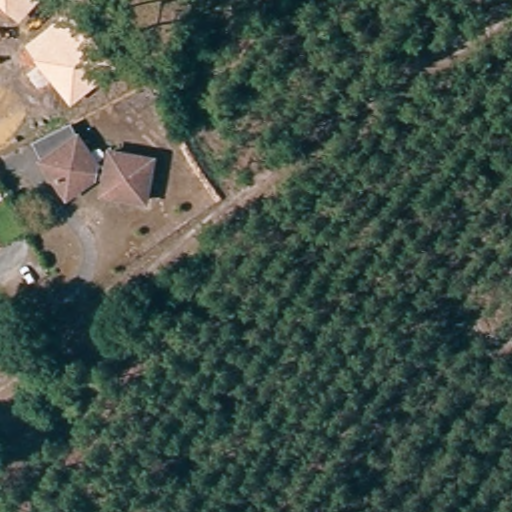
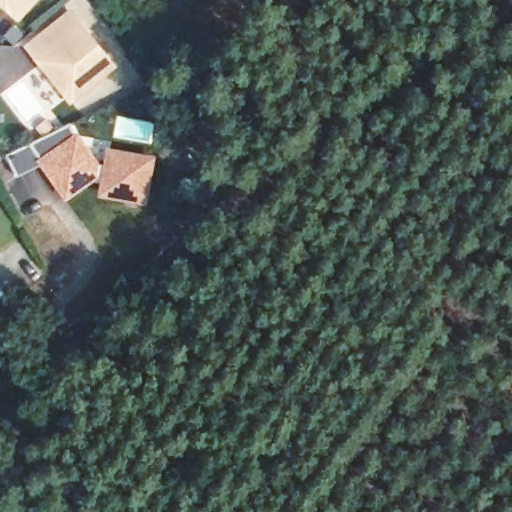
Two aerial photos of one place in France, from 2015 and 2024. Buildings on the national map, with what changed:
unchanged [(0,0),(37,0),(19,20),(0,3),(0,0)]
unchanged [(24,45),(72,9),(118,68),(71,105),(24,45)]
unchanged [(110,170),(111,160),(151,167),(148,206),(105,197),(106,187),(96,182),(70,200),(44,165),(30,146),(45,139),(69,126),(80,144),(94,167),(110,170)]

